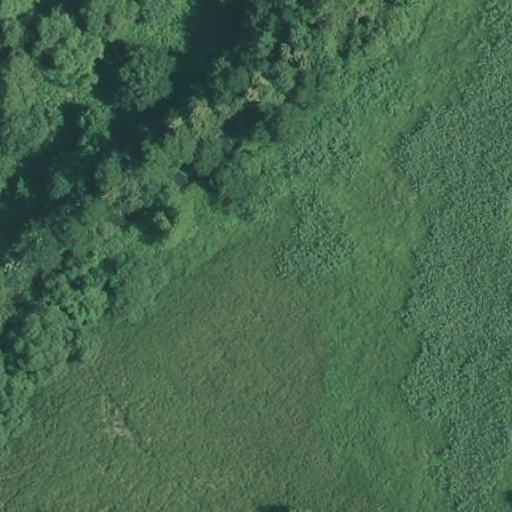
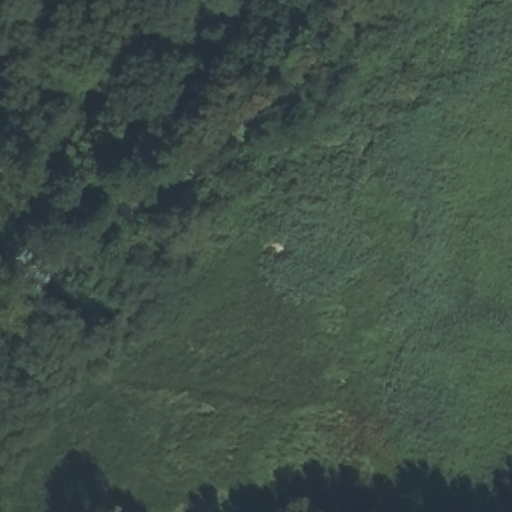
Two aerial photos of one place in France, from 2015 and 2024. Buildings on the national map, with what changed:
unchanged [(48,172),(74,168),(82,216),(57,220),(48,172)]

